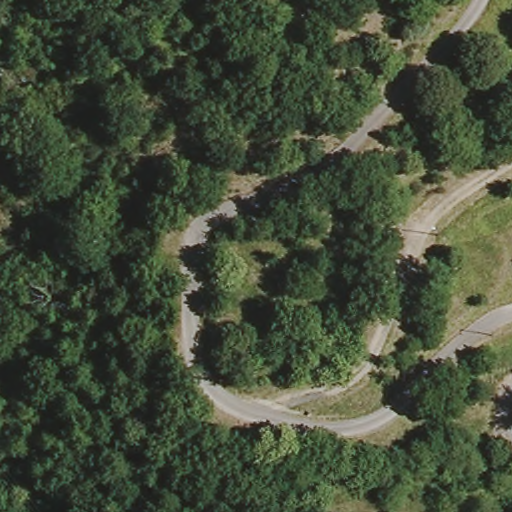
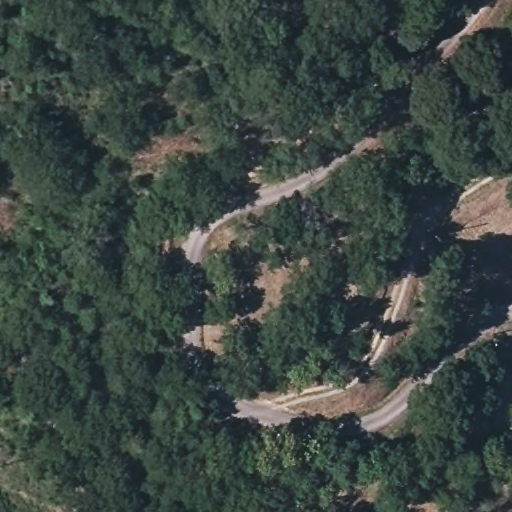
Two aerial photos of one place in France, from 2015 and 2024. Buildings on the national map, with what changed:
[]

